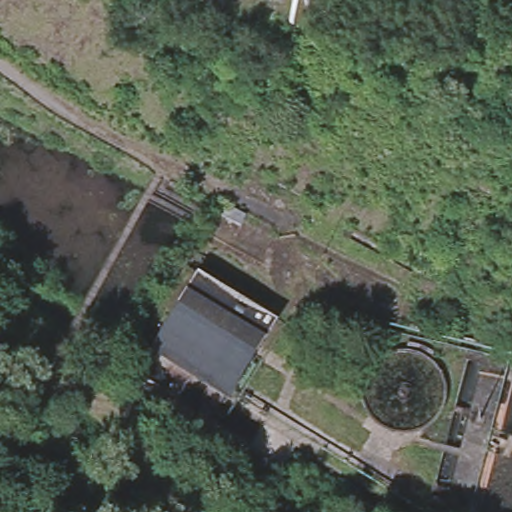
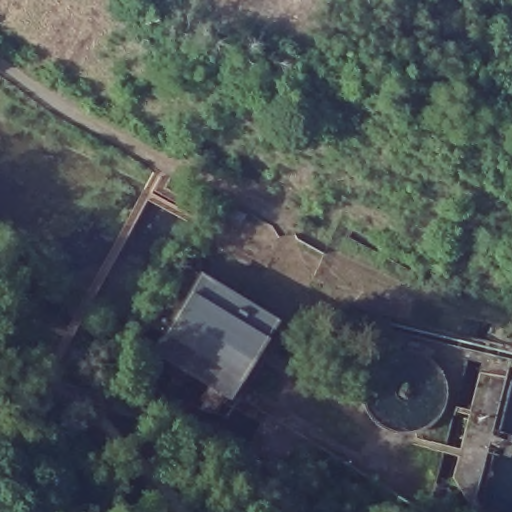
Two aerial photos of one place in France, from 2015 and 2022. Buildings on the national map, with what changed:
unchanged [(154,326),(190,270),(202,277),(277,322),(230,399),(155,352),(167,334),(154,326)]
unchanged [(335,512),(302,490),(310,476),(321,460),(327,451),(405,500),(400,507),(397,512),(335,512)]

